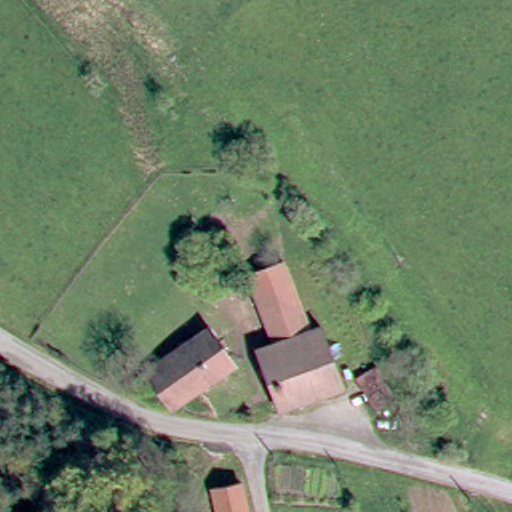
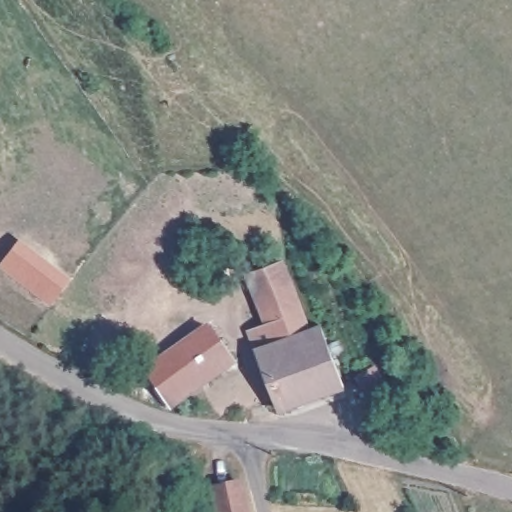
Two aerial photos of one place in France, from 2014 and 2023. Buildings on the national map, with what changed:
new [(22,241),(66,282),(45,304),(1,263),(22,241)]
unchanged [(321,323),(337,389),(269,406),(255,340),(272,336),(266,303),(263,287),(295,278),(300,295),(307,325),(321,323)]
unchanged [(147,369),(210,330),(233,365),(172,405),(147,369)]
unchanged [(375,389),(362,361),(380,354),(392,382),(375,389)]
unchanged [(232,467),(245,512),(213,512),(203,475),(232,467)]

